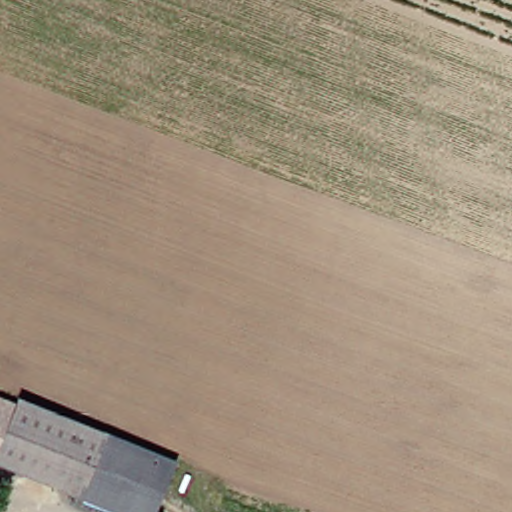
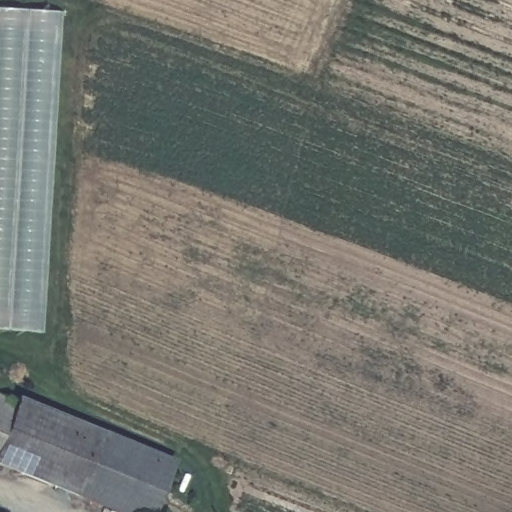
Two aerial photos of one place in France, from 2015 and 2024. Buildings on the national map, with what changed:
new [(40,332),(0,330),(0,8),(58,12),(40,332)]
unchanged [(5,464),(0,462),(0,389),(28,398),(5,464)]
unchanged [(155,445),(135,493),(119,488),(114,496),(58,476),(55,483),(5,464),(28,398),(155,445)]
new [(58,476),(114,496),(119,488),(135,493),(155,445),(180,457),(156,512),(125,512),(55,483),(58,476)]

